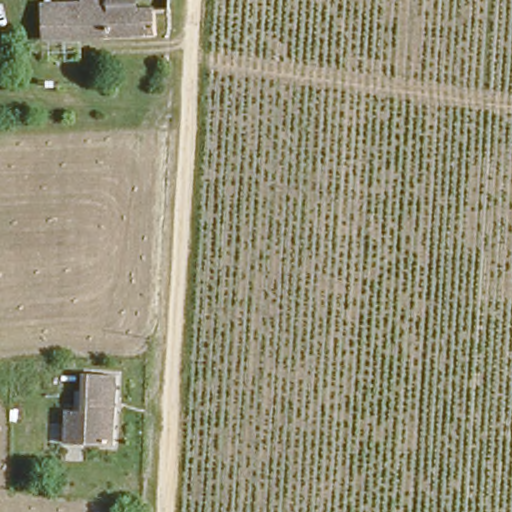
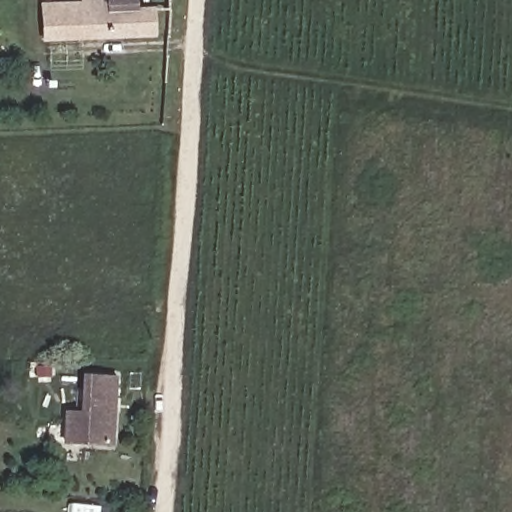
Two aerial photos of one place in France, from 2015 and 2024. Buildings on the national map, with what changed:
unchanged [(153,32),(45,41),(43,8),(82,4),(82,0),(166,0),(166,4),(152,5),(153,32)]
unchanged [(60,417),(61,382),(84,382),(85,374),(111,374),(110,439),(60,440),(60,417)]

